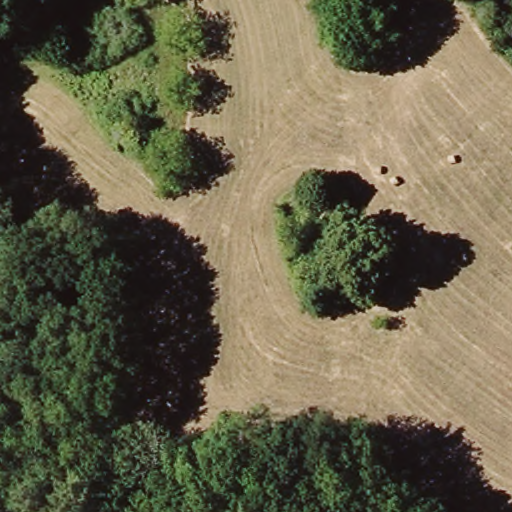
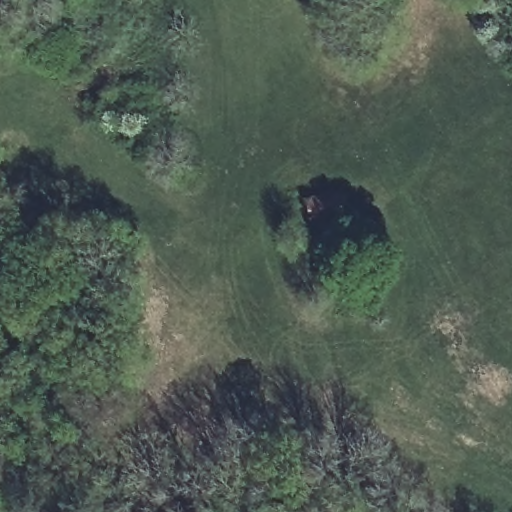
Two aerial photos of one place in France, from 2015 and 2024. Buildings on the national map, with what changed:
unchanged [(344,198),(343,217),(307,214),(309,195),(344,198)]

